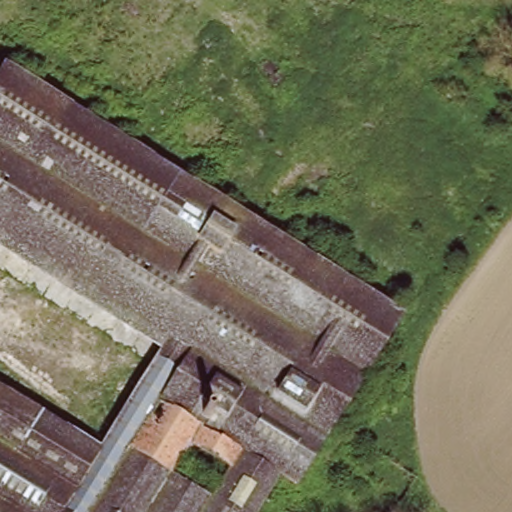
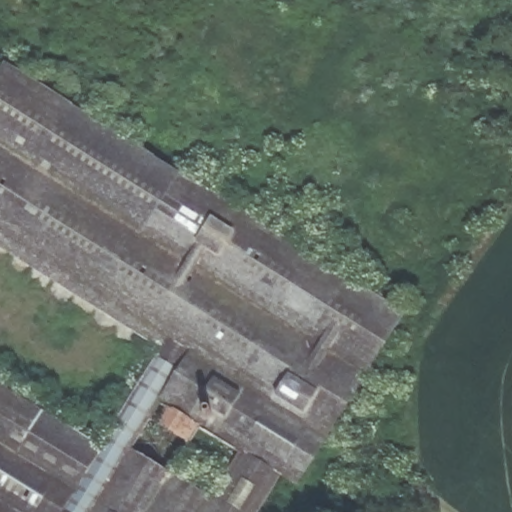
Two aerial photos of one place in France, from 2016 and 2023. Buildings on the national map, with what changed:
unchanged [(326,432),(323,435),(0,185),(0,77),(395,323),(326,432)]
unchanged [(326,438),(292,490),(277,481),(263,505),(259,512),(0,512),(0,393),(82,445),(144,345),(148,339),(0,243),(0,185),(323,435),(326,438)]
unchanged [(144,345),(0,254),(0,243),(148,339),(144,345)]

